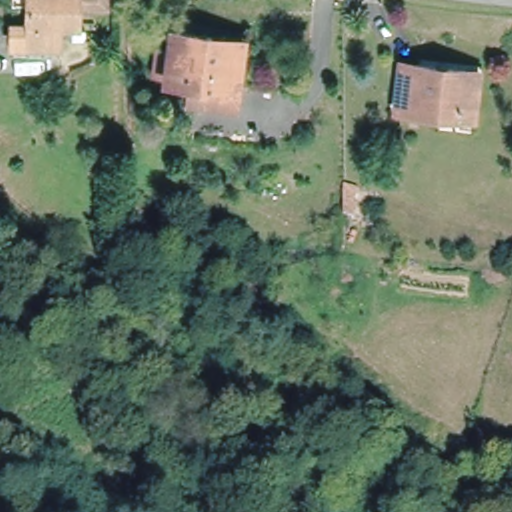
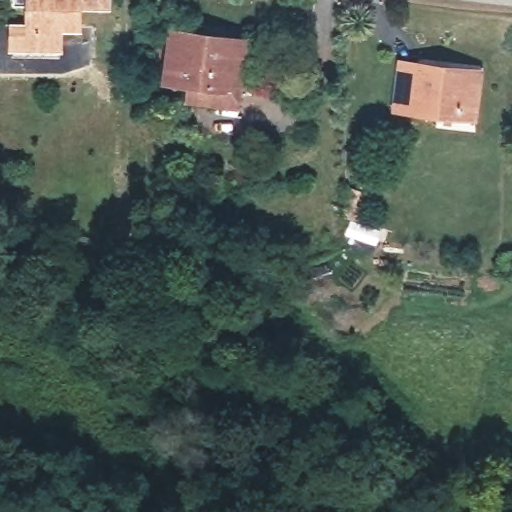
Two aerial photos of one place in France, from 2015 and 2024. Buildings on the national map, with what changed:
unchanged [(28,0),(79,0),(77,22),(60,21),(57,52),(10,49),(11,21),(26,21),(28,0)]
unchanged [(104,1),(96,0),(111,0),(110,1),(104,1)]
unchanged [(181,24),(217,32),(216,40),(237,45),(227,92),(191,83),(170,79),(181,24)]
unchanged [(246,38),(232,109),(188,100),(191,83),(227,92),(237,45),(216,40),(217,32),(246,38)]
unchanged [(480,112),(464,111),(402,107),(404,65),(467,69),(482,70),(480,112)]

